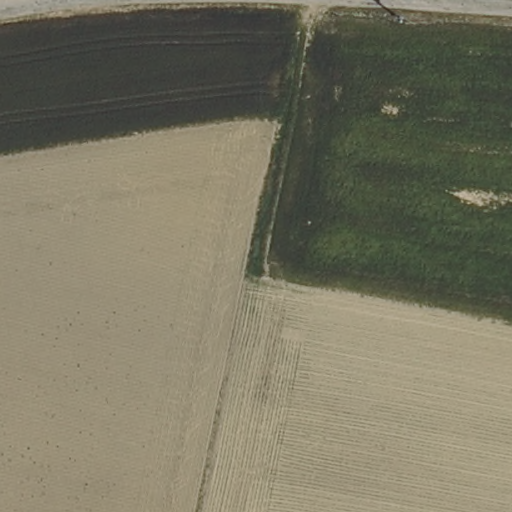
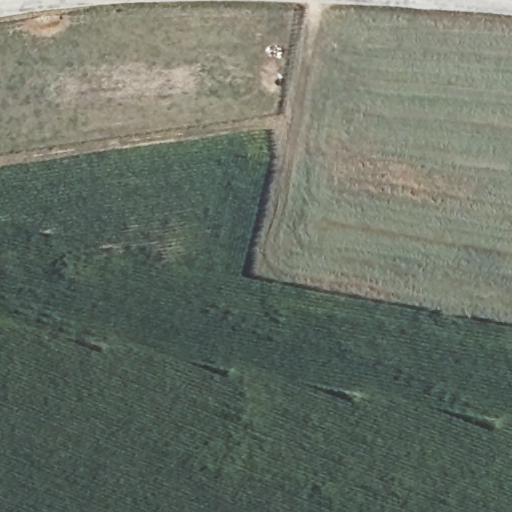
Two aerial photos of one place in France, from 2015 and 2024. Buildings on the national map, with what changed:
[]

